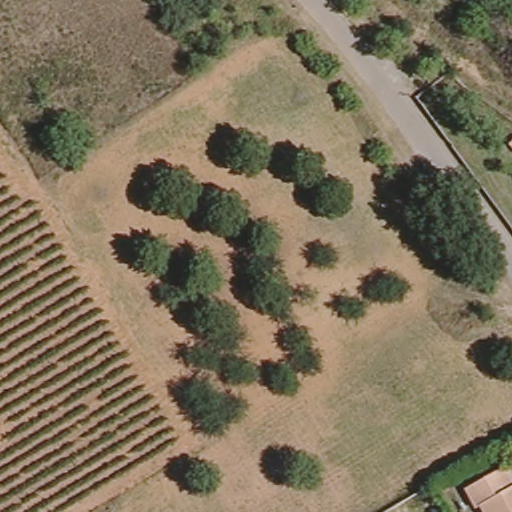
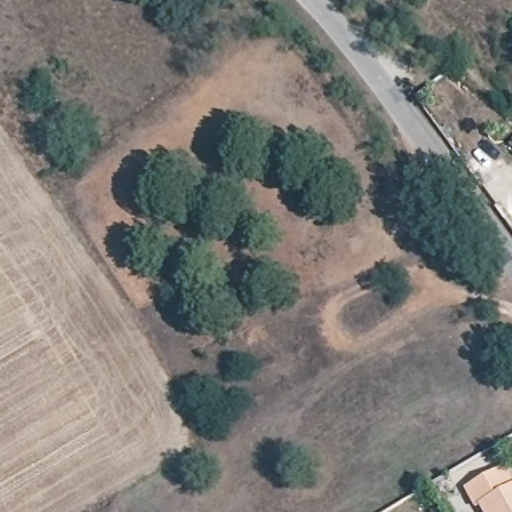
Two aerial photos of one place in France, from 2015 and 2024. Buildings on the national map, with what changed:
unchanged [(476,512),(472,512),(460,490),(497,469),(510,488),(512,487),(512,512),(480,512),(479,510),(476,512)]

